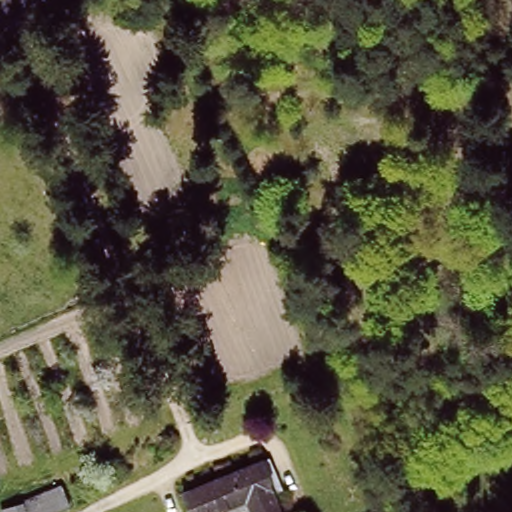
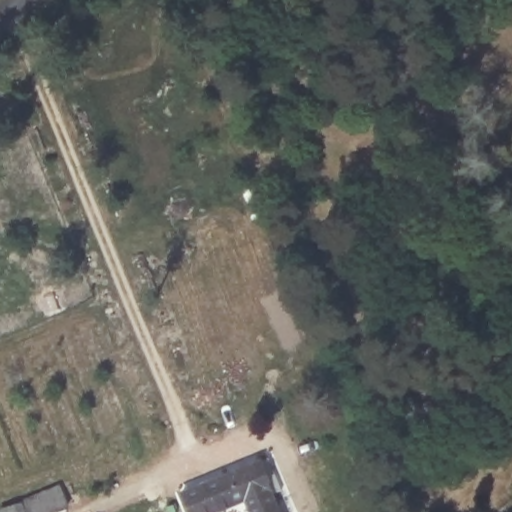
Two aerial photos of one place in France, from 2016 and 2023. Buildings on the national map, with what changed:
unchanged [(247,500),(246,497),(210,512),(197,512),(188,490),(262,459),(272,455),(281,481),(284,488),(275,492),(282,512),(251,512),(247,500)]
unchanged [(2,510),(22,502),(24,501),(59,487),(67,507),(53,512),(39,512),(38,509),(30,512),(3,512),(2,510)]

